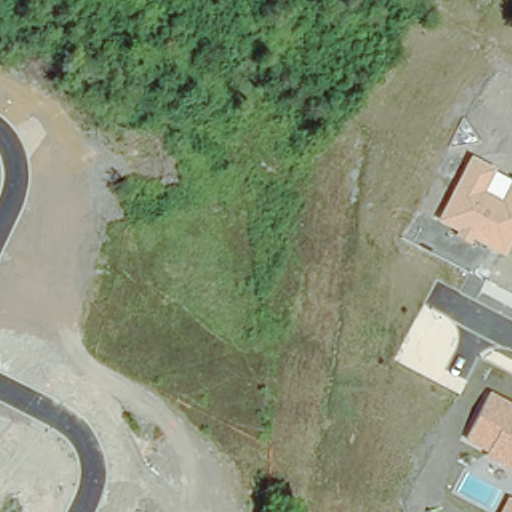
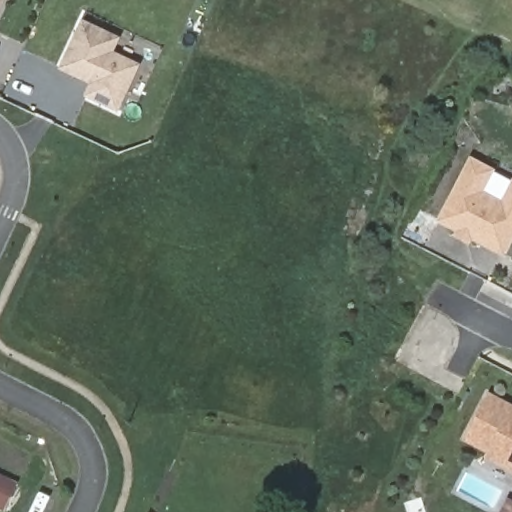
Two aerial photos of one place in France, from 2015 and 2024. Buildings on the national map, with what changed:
new [(0,9),(0,0),(4,0),(0,9)]
new [(118,114),(84,97),(89,85),(58,70),(81,19),(121,37),(114,52),(141,64),(118,114)]
unchanged [(472,240),(470,244),(455,237),(457,232),(437,221),(471,156),(496,170),(495,172),(512,180),(512,245),(506,257),(472,240)]
unchanged [(488,452),(465,440),(490,392),(512,403),(512,472),(486,458),(488,452)]
new [(18,484),(5,511),(0,508),(0,475),(18,484)]
unchanged [(512,499),(512,512),(501,512),(508,498),(512,499)]

